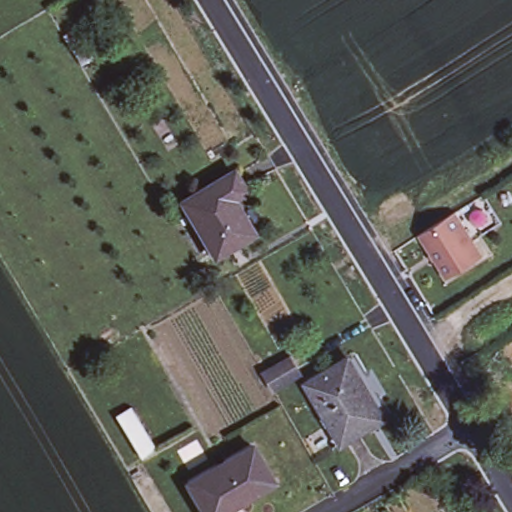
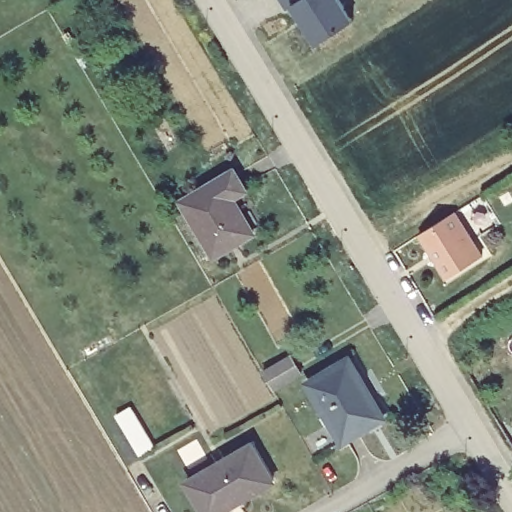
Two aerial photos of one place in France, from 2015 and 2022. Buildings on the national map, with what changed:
new [(293,6),(288,10),(281,0),(341,0),(355,21),(318,45),(293,6)]
unchanged [(229,172),(241,192),(226,200),(246,235),(210,256),(178,202),(229,172)]
unchanged [(454,212),(483,255),(449,277),(421,234),(454,212)]
unchanged [(389,413),(336,445),(301,385),(354,355),(389,413)]
unchanged [(297,377),(271,392),(263,379),(289,362),(297,377)]
unchanged [(212,512),(201,512),(181,480),(246,440),(269,476),(212,512)]

